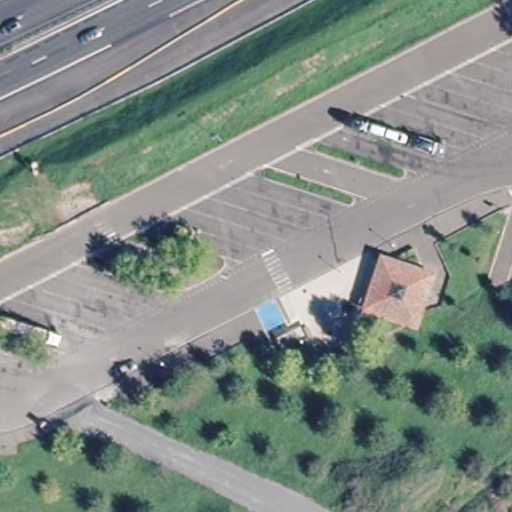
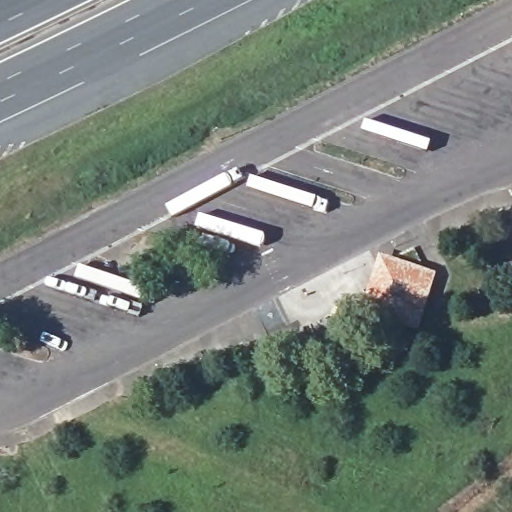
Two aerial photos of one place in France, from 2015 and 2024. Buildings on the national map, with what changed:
unchanged [(378,257),(432,273),(412,335),(361,315),(378,257)]

